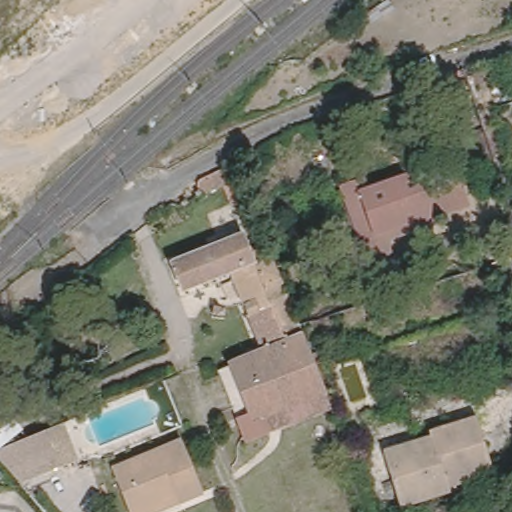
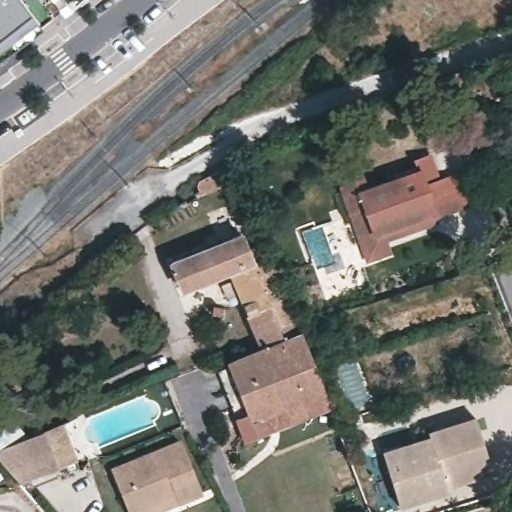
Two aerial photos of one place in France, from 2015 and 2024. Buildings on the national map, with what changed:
new [(34,17),(41,25),(0,54),(0,0),(21,0),(34,17)]
new [(61,12),(52,0),(74,0),(68,4),(61,12)]
unchanged [(432,150),(452,144),(460,166),(471,162),(483,194),(452,205),(454,212),(427,221),(394,232),(380,197),(368,201),(358,177),(372,172),(371,168),(402,157),(407,172),(436,162),(432,150)]
unchanged [(237,163),(242,177),(205,195),(199,181),(237,163)]
unchanged [(380,197),(394,232),(427,221),(432,235),(380,255),(360,204),(368,201),(380,197)]
unchanged [(299,318),(303,328),(262,345),(232,267),(184,285),(173,256),(244,229),(251,245),(268,238),(299,318)]
unchanged [(231,358),(262,345),(303,328),(310,348),(316,364),(326,388),(264,412),(270,430),(247,438),(237,415),(218,363),(231,358)]
unchanged [(332,410),(270,430),(264,412),(326,388),(332,410)]
unchanged [(430,433),(429,427),(476,413),(493,464),(448,478),(450,486),(400,502),(383,447),(430,433)]
unchanged [(0,455),(0,448),(62,422),(78,456),(22,481),(0,455)]
unchanged [(200,493),(153,512),(133,512),(115,467),(179,442),(200,493)]

